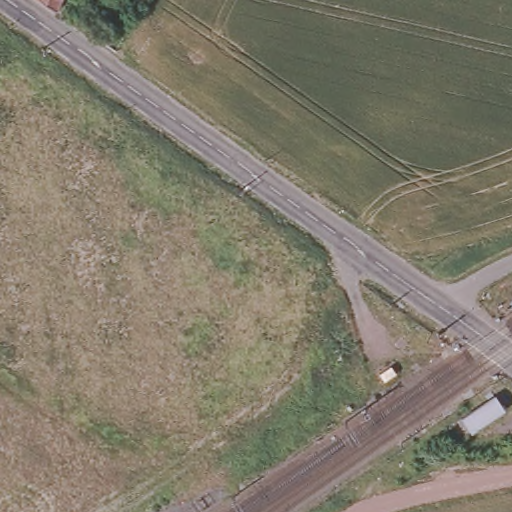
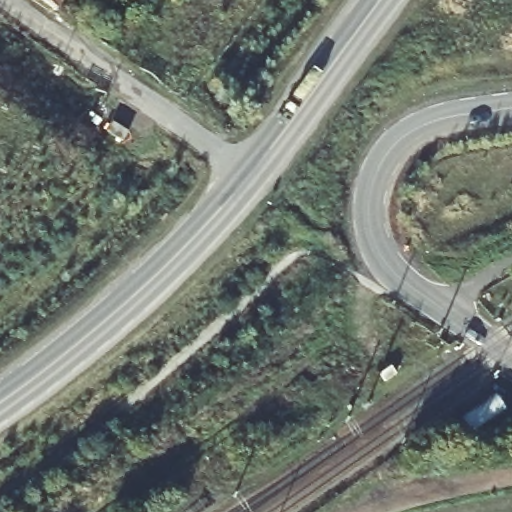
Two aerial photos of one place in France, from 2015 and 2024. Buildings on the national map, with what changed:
unchanged [(55,10),(42,0),(59,0),(55,10)]
unchanged [(497,395),(506,410),(472,433),(463,419),(497,395)]

